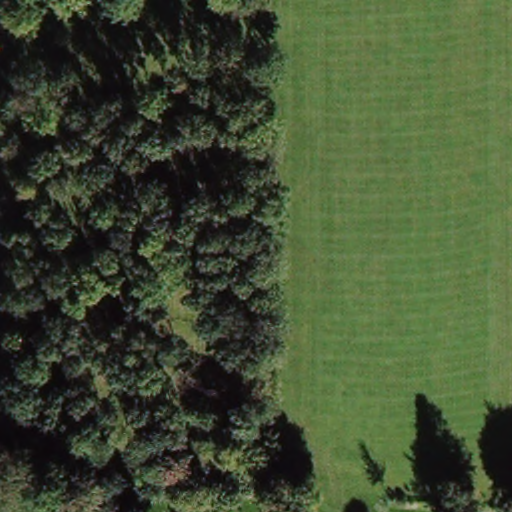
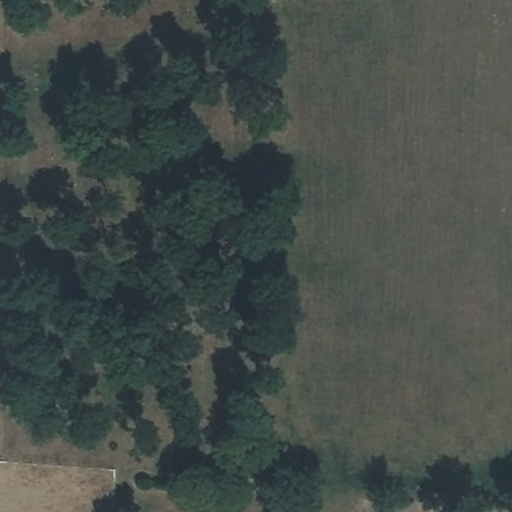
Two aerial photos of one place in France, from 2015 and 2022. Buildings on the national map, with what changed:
[]

